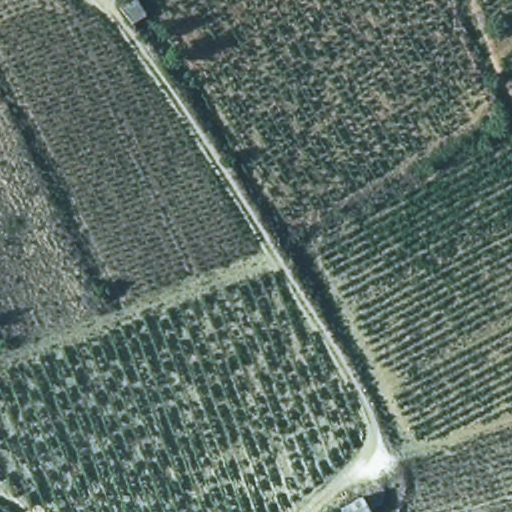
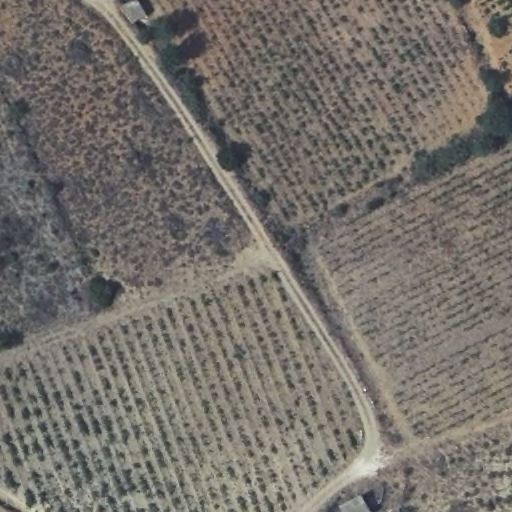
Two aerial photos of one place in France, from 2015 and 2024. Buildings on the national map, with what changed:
unchanged [(144,0),(149,14),(138,23),(128,4),(134,0),(144,0)]
unchanged [(362,498),(372,512),(342,512),(339,509),(362,498)]

